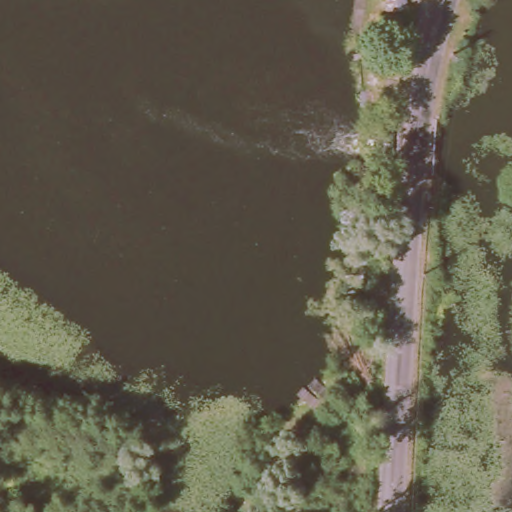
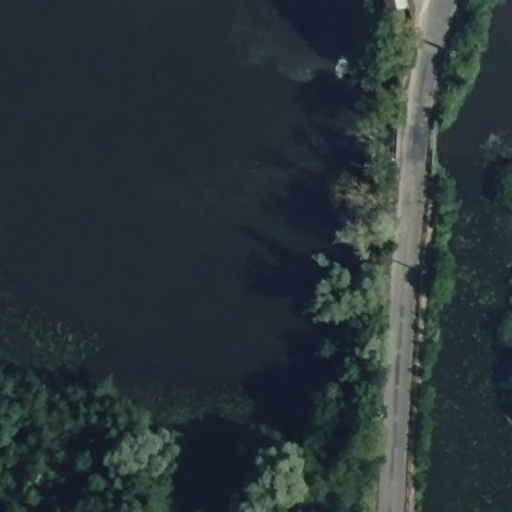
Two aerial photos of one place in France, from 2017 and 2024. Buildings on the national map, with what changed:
unchanged [(389,9),(386,0),(406,0),(407,5),(389,9)]

